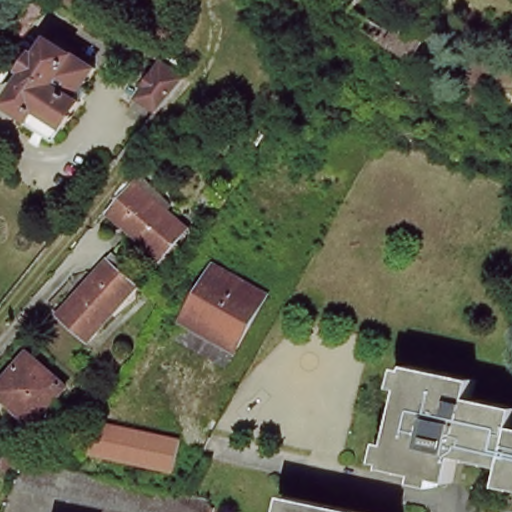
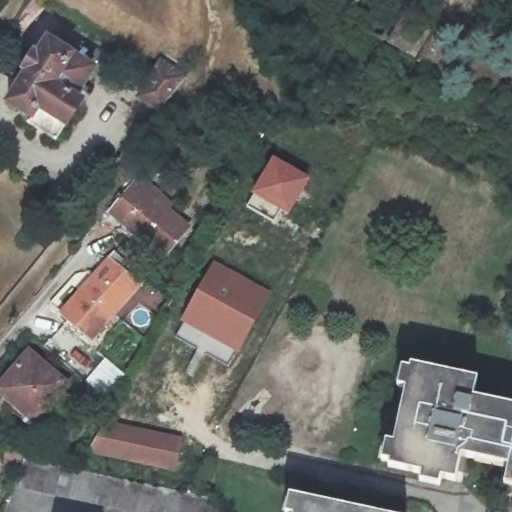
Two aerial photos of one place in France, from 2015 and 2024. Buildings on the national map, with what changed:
unchanged [(375,67),(385,71),(397,45),(334,11),(341,0),(382,0),(394,7),(398,0),(425,0),(432,4),(425,25),(430,27),(408,99),(378,95),(370,94),(373,80),(375,67)]
unchanged [(14,95),(54,32),(99,61),(81,90),(87,95),(72,119),(71,117),(60,134),(34,116),(37,110),(14,95)]
unchanged [(161,60),(186,77),(172,94),(159,110),(137,95),(161,60)]
new [(312,180),(290,217),(252,195),(274,156),(312,180)]
unchanged [(115,214),(123,204),(117,199),(134,179),(193,227),(170,256),(115,214)]
unchanged [(61,311),(95,271),(113,249),(114,250),(142,274),(136,281),(138,283),(91,337),(61,311)]
unchanged [(187,320),(224,254),(277,285),(240,351),(187,320)]
unchanged [(0,393),(0,385),(30,352),(68,385),(35,423),(0,393)]
unchanged [(414,371),(480,386),(475,404),(512,414),(512,492),(504,490),(509,469),(462,458),(455,485),(389,470),(414,371)]
unchanged [(176,473),(91,456),(97,422),(183,438),(176,473)]
unchanged [(205,504),(208,505),(207,512),(131,512),(8,483),(13,469),(0,468),(0,462),(1,450),(19,452),(18,456),(207,498),(205,504)]
unchanged [(302,493),(379,512),(297,512),(302,493)]

